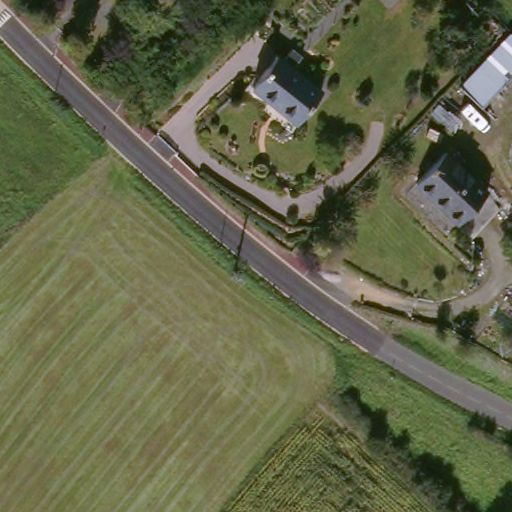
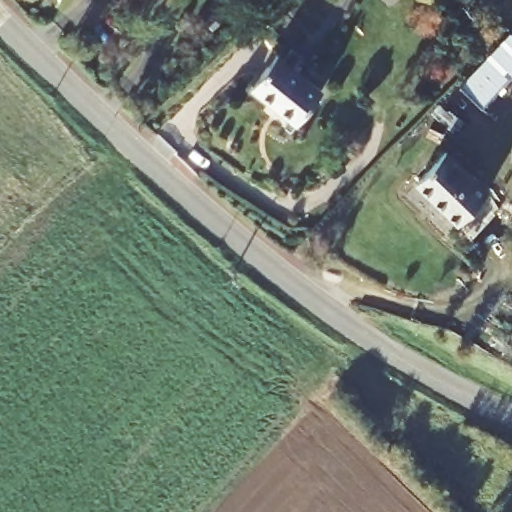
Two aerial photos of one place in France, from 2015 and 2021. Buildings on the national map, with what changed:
unchanged [(512,30),(512,78),(501,90),(489,104),(466,82),(466,81),(477,70),(512,30)]
unchanged [(284,49),(328,85),(293,124),(264,99),(269,92),(257,82),(284,49)]
unchanged [(450,147),(507,200),(484,225),(467,212),(456,225),(414,186),(450,147)]

